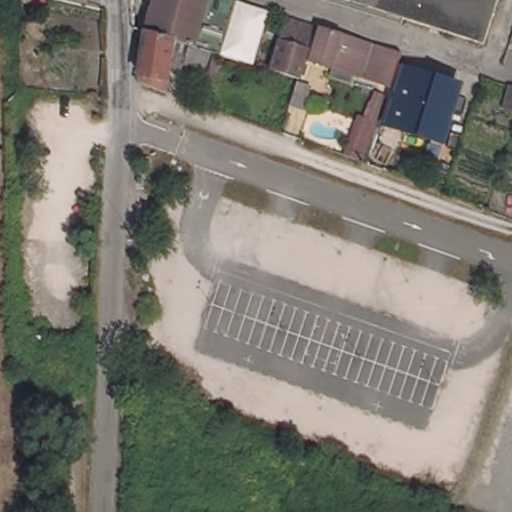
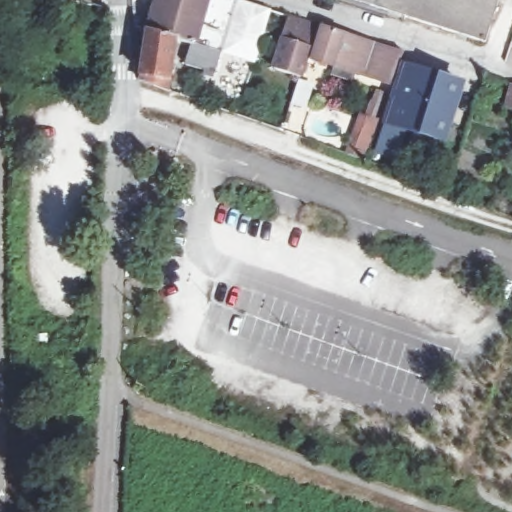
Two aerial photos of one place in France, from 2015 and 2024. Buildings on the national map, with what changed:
unchanged [(45,2),(38,0),(46,0),(45,2)]
unchanged [(223,48),(177,35),(170,86),(142,77),(150,27),(159,0),(238,0),(223,48)]
unchanged [(488,42),(416,19),(377,7),(354,0),(501,0),(488,42)]
unchanged [(285,39),(293,14),(324,24),(336,28),(345,31),(367,37),(406,50),(402,60),(399,72),(395,82),(335,62),(334,66),(312,59),(315,49),(311,47),(302,76),(275,69),(285,39)]
unchanged [(462,82),(443,144),(384,122),(395,82),(399,72),(402,60),(462,82)]
unchanged [(512,94),(512,106),(508,105),(512,94)]

